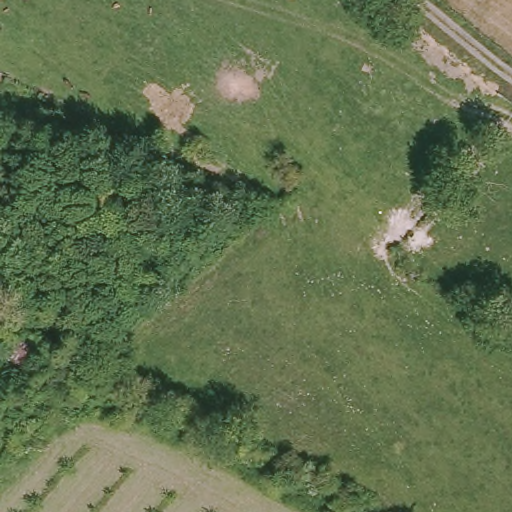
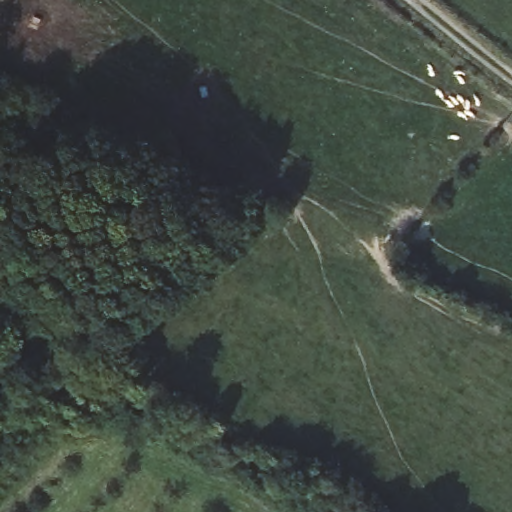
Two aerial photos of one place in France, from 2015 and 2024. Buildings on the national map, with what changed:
unchanged [(27,324),(63,346),(38,380),(5,357),(27,324)]

